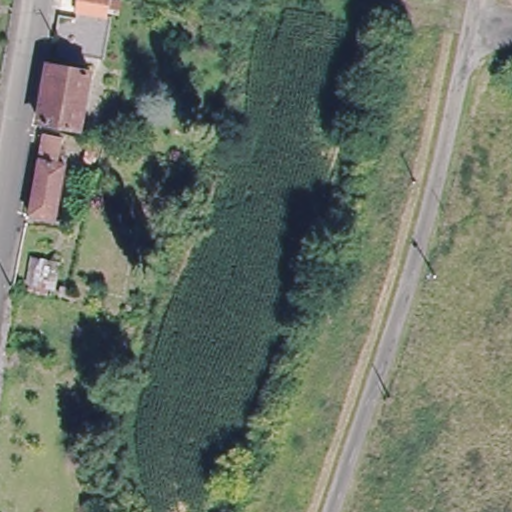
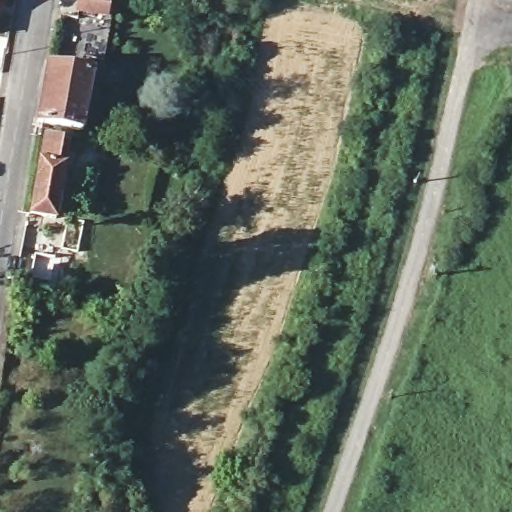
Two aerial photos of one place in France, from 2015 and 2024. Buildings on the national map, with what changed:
unchanged [(112,15),(87,7),(88,0),(115,0),(112,15)]
unchanged [(51,123),(63,57),(94,65),(82,131),(51,123)]
unchanged [(63,136),(60,157),(72,159),(60,212),(38,208),(49,132),(63,136)]

